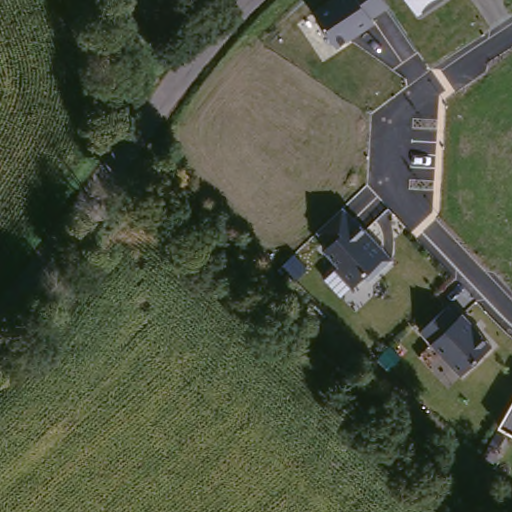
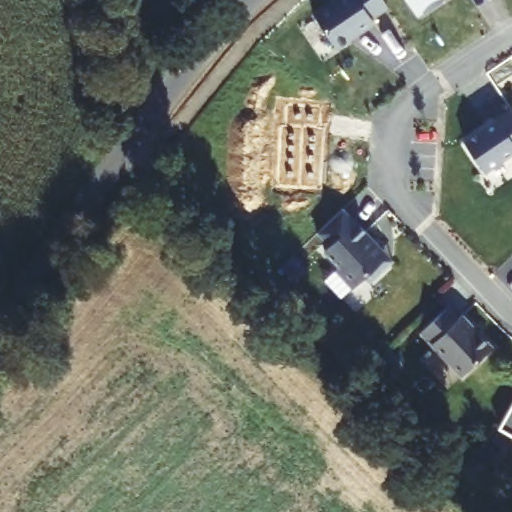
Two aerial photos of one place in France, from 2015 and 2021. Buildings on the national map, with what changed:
unchanged [(382,0),(386,7),(373,17),(376,22),(336,49),(311,11),(328,0),(382,0)]
unchanged [(408,0),(443,0),(418,16),(408,0)]
new [(512,112),(512,155),(484,173),(465,144),(512,112)]
unchanged [(330,271),(335,264),(308,240),(340,210),(387,256),(349,289),(330,271)]
unchanged [(415,331),(444,305),(455,318),(459,314),(493,347),(459,376),(415,331)]
unchanged [(497,428),(512,403),(512,436),(497,428)]

